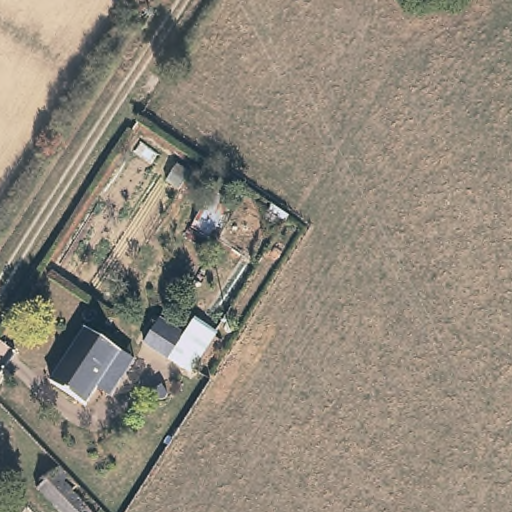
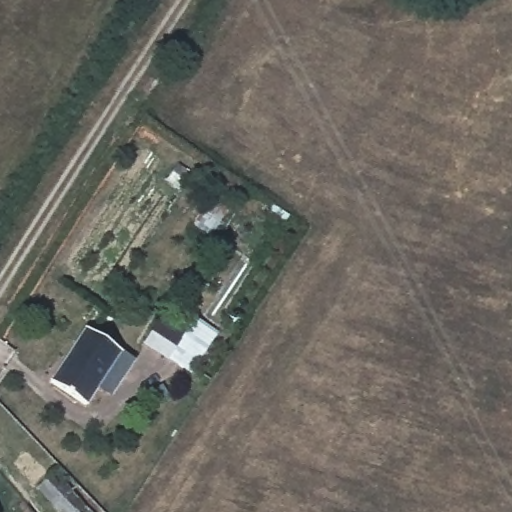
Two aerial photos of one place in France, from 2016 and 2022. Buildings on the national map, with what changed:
unchanged [(200,346),(185,367),(146,342),(160,320),(200,346)]
unchanged [(133,357),(110,393),(97,385),(82,405),(50,383),(86,327),(133,357)]
unchanged [(75,483),(70,490),(93,512),(60,512),(35,487),(58,465),(75,483)]

